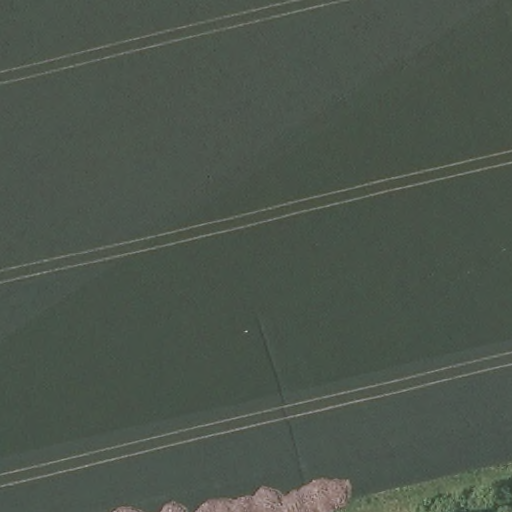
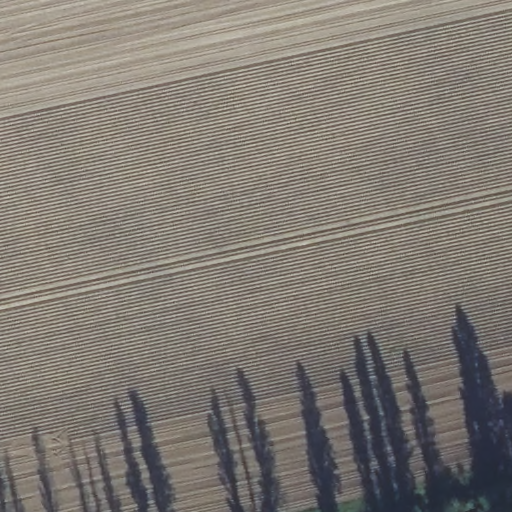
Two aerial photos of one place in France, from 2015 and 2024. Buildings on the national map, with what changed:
[]

